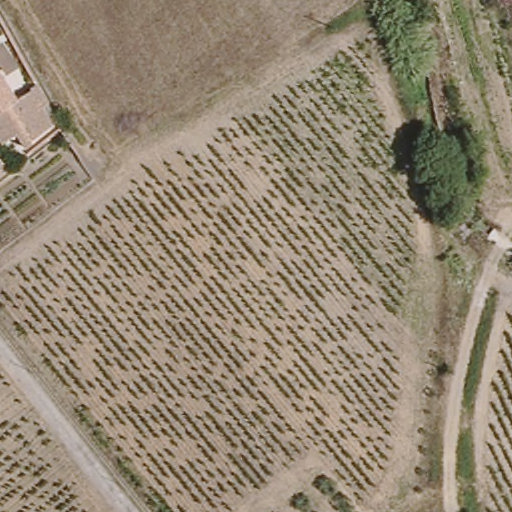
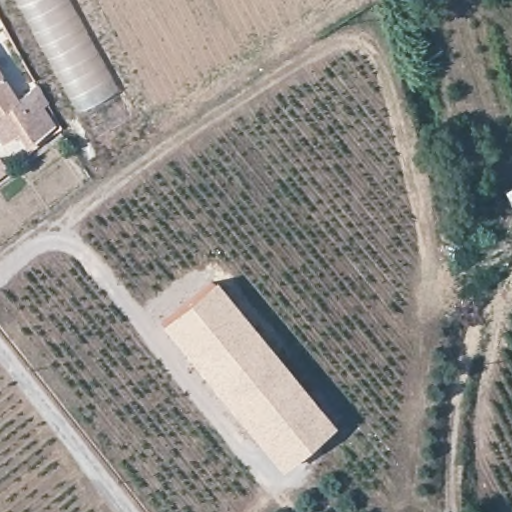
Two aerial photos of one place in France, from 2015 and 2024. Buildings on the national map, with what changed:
new [(65,0),(129,117),(90,136),(16,0),(65,0)]
new [(19,67),(4,76),(0,70),(0,43),(2,41),(19,67)]
unchanged [(35,110),(48,132),(17,150),(10,137),(0,145),(0,88),(20,120),(35,110)]
new [(0,177),(0,159),(9,170),(0,177)]
new [(161,325),(212,283),(328,426),(279,468),(161,325)]

